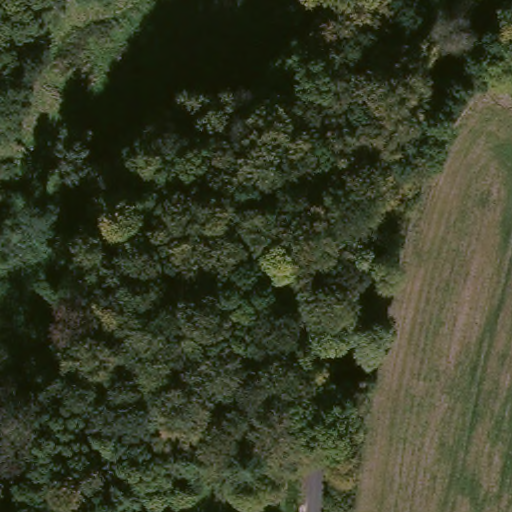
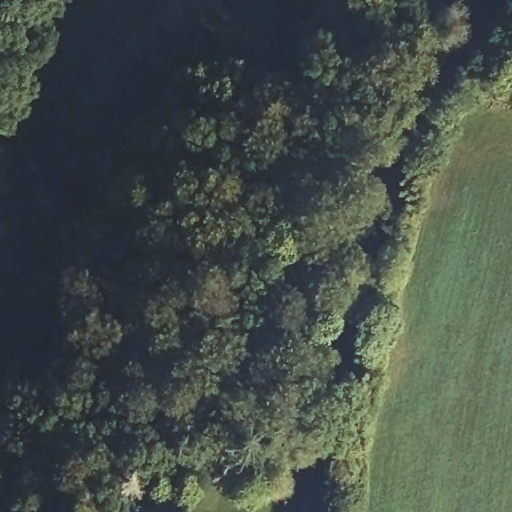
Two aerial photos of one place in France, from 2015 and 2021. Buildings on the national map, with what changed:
unchanged [(172,461),(168,494),(139,489),(142,459),(172,461)]

